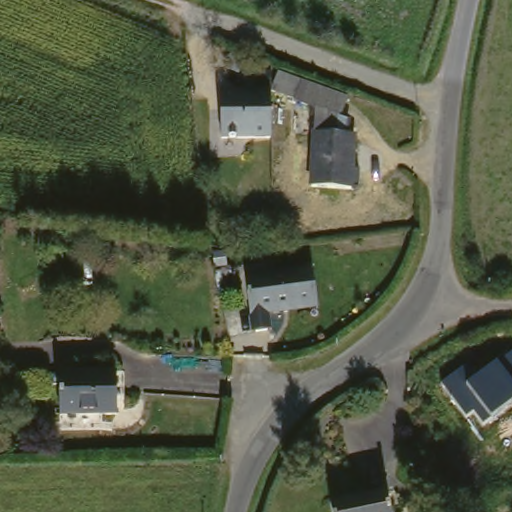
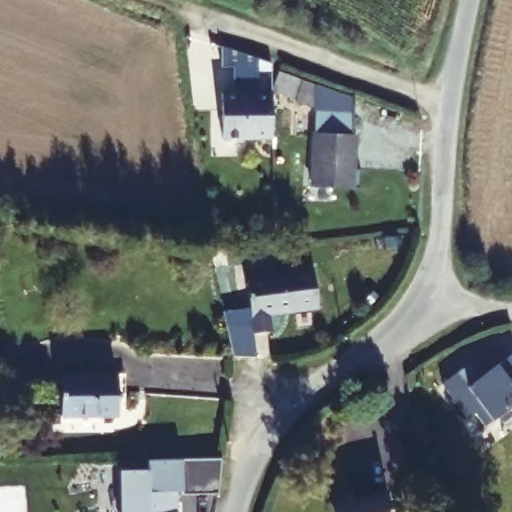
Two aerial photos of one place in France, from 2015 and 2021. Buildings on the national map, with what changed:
unchanged [(315,102),(288,93),(289,88),(277,84),(282,69),(343,90),(337,109),(344,112),(342,132),(352,132),(349,183),(310,181),(315,102)]
unchanged [(273,134),(223,135),(222,89),(272,88),(273,134)]
unchanged [(256,331),(248,282),(247,280),(245,276),(309,265),(316,305),(270,312),(272,328),(267,329),(256,331)]
unchanged [(473,360),(482,374),(498,364),(512,354),(512,403),(493,418),(484,425),(474,411),(466,416),(443,383),(473,360)]
unchanged [(60,383),(47,383),(47,369),(116,370),(116,383),(115,411),(60,411),(60,383)]
new [(218,452),(216,487),(180,489),(180,485),(174,485),(175,497),(176,512),(121,512),(118,466),(146,465),(145,455),(218,452)]
unchanged [(390,512),(337,512),(334,499),(385,489),(390,512)]

